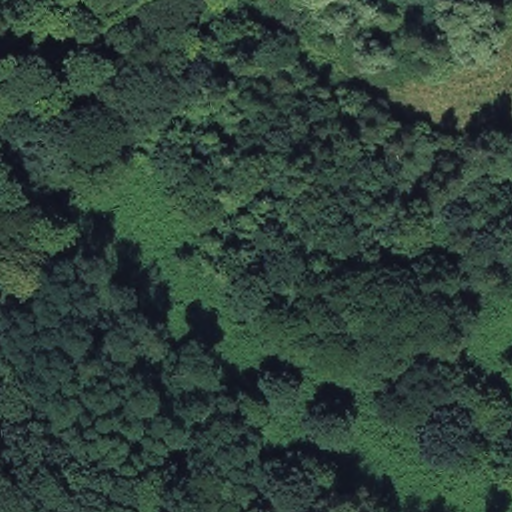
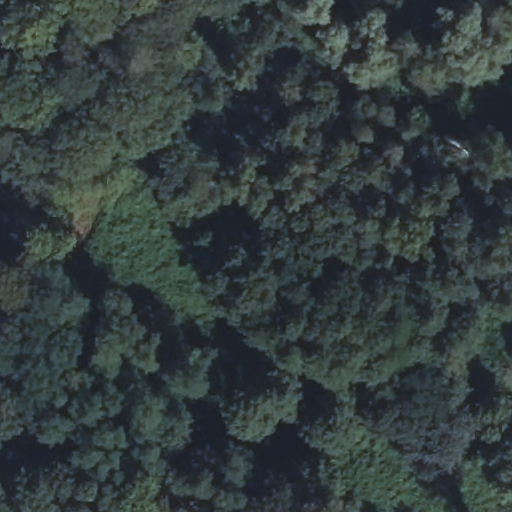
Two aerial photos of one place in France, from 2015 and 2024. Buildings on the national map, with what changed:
unchanged [(181,6),(168,0),(184,0),(181,6)]

